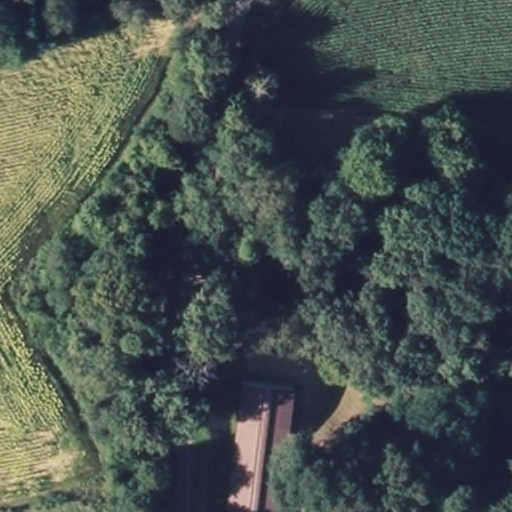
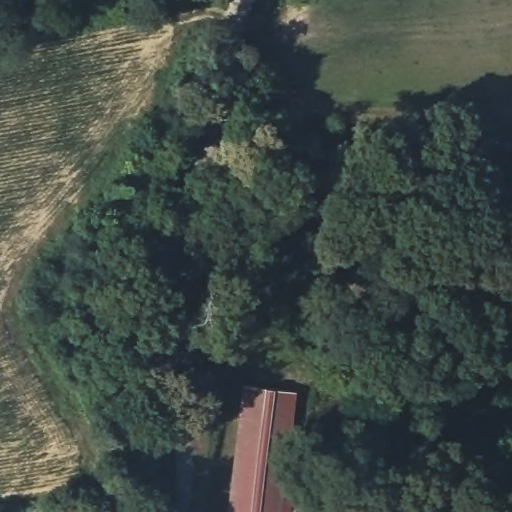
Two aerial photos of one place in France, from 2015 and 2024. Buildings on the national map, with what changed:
unchanged [(297,389),(282,512),(224,512),(240,385),(297,389)]

